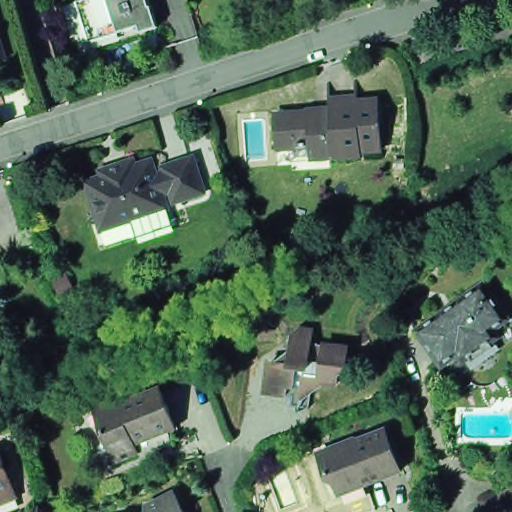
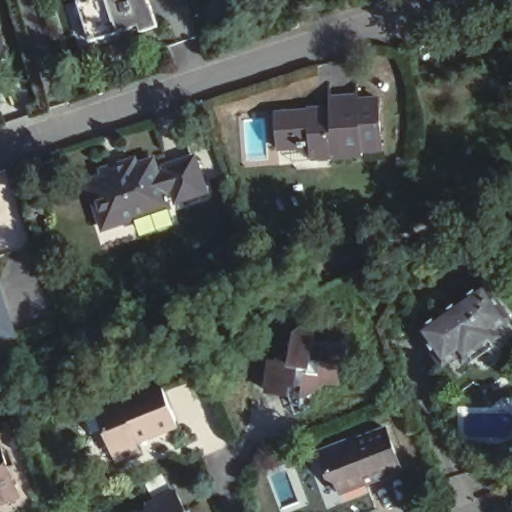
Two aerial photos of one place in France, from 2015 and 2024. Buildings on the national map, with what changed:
unchanged [(141,21),(143,27),(145,35),(136,37),(134,31),(113,37),(85,47),(82,36),(73,6),(82,3),(81,0),(135,0),(139,15),(141,21)]
unchanged [(11,54),(0,57),(0,18),(11,54)]
unchanged [(336,82),(337,97),(362,96),(361,81),(363,81),(365,100),(384,99),(388,150),(368,152),(369,156),(317,160),(316,147),(285,150),(282,113),(336,109),(334,82),(336,82)]
unchanged [(172,172),(200,163),(211,197),(183,206),(179,195),(173,177),(172,172)]
unchanged [(111,182),(109,176),(140,166),(142,172),(159,166),(164,181),(173,177),(179,195),(170,198),(172,207),(156,212),(158,217),(126,228),(123,219),(106,224),(94,187),(111,182)]
new [(19,338),(0,344),(0,282),(19,338)]
unchanged [(442,315),(444,317),(464,303),(463,301),(485,285),(509,318),(493,330),(499,337),(465,361),(459,353),(444,365),(420,331),(442,315)]
unchanged [(272,357),(278,358),(278,356),(292,345),(295,346),(297,329),(303,323),(315,326),(313,337),(350,342),(347,365),(341,369),(339,378),(315,375),(312,402),(294,400),(295,390),(268,387),(272,357)]
unchanged [(123,397),(127,405),(168,388),(183,426),(160,435),(159,432),(141,440),(146,453),(123,462),(110,430),(115,428),(105,405),(101,407),(100,406),(123,397)]
unchanged [(358,441),(358,442),(392,428),(408,470),(347,493),(340,475),(335,477),(326,453),(358,441)]
unchanged [(1,447),(17,488),(0,496),(0,448),(1,447)]
unchanged [(149,507),(177,492),(187,512),(149,512),(149,507)]
unchanged [(2,500),(0,500),(0,496),(2,500)]

